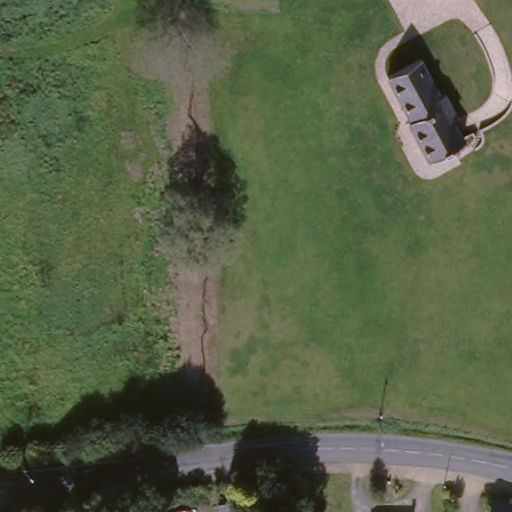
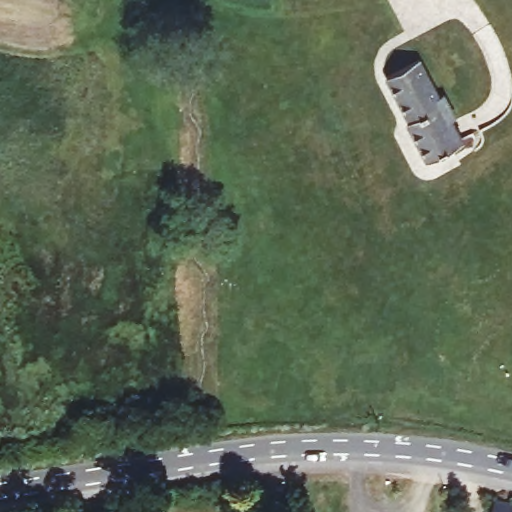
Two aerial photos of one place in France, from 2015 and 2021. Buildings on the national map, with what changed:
unchanged [(395,72),(426,58),(445,94),(451,91),(464,116),(455,121),(466,146),(431,163),(410,119),(416,115),(395,72)]
unchanged [(496,496),(512,499),(512,512),(493,512),(496,496)]

